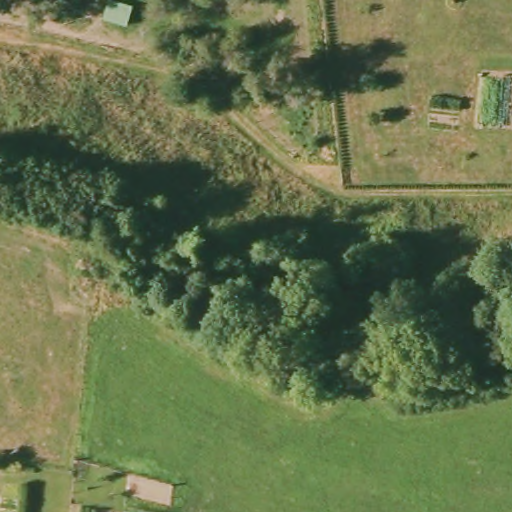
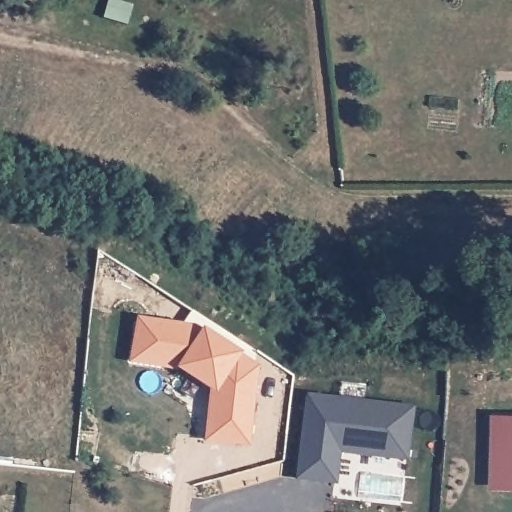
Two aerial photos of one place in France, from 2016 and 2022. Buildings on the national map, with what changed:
new [(129,321),(172,327),(173,317),(248,362),(243,441),(203,438),(206,387),(172,367),(124,361),(129,321)]
new [(339,453),(335,483),(294,480),(302,395),(413,407),(407,460),(339,453)]
new [(491,488),(494,412),(512,413),(512,489),(491,488)]

